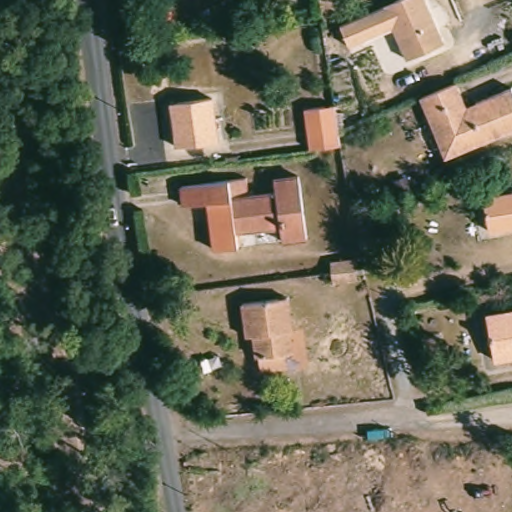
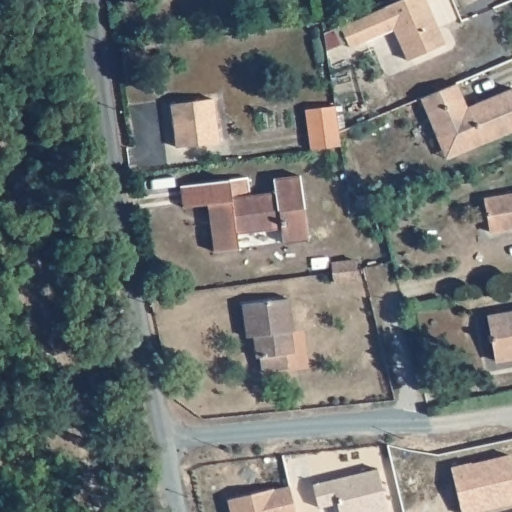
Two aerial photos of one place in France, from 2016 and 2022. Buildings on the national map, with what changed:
unchanged [(397,0),(427,0),(446,44),(406,59),(393,29),(347,47),(338,27),(397,0)]
unchanged [(435,142),(417,101),(453,85),(463,109),(473,105),(509,90),(512,98),(512,131),(453,157),(443,161),(435,142)]
unchanged [(224,142),(181,147),(176,105),(217,99),(224,142)]
unchanged [(335,141),(336,147),(304,151),(300,112),(330,109),(335,141)]
unchanged [(312,239),(287,242),(285,226),(240,232),(242,247),(219,251),(213,204),(188,207),(187,187),(252,179),(254,197),(281,193),(278,179),(304,176),(312,239)]
unchanged [(483,206),(512,200),(512,234),(489,238),(483,206)]
unchanged [(329,273),(327,262),(352,260),(353,270),(354,280),(330,283),(329,273)]
unchanged [(287,337),(284,337),(287,358),(278,359),(280,374),(258,377),(256,362),(251,362),(248,342),(242,342),(236,310),(283,304),(287,337)]
unchanged [(499,367),(491,322),(512,317),(512,365),(499,367)]
new [(460,512),(450,467),(470,462),(471,463),(509,455),(512,470),(512,503),(501,506),(490,508),(472,512),(460,512)]
new [(387,510),(376,512),(338,512),(336,502),(318,507),(312,483),(377,468),(387,510)]
new [(272,490),(289,486),(295,512),(231,512),(228,498),(272,488),(272,490)]

